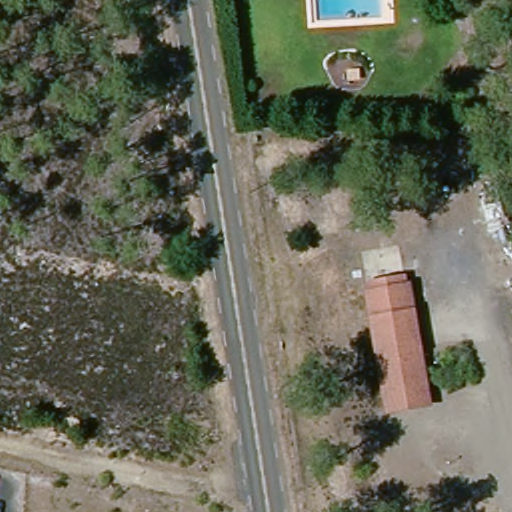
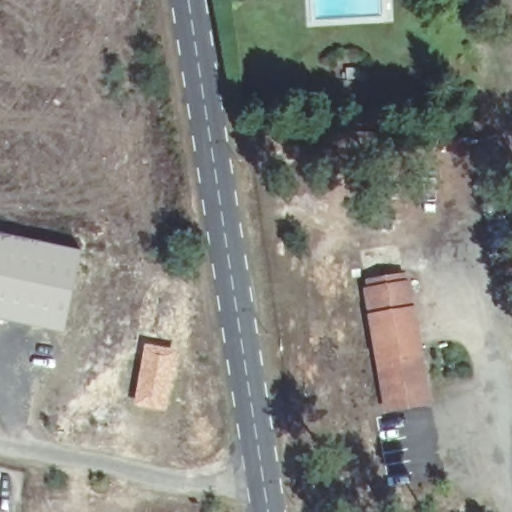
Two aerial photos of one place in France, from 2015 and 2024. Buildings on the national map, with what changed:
new [(0,319),(0,234),(82,251),(65,333),(0,319)]
unchanged [(394,417),(390,390),(383,392),(372,327),(377,325),(373,305),(369,282),(401,275),(406,299),(429,409),(394,417)]
new [(146,350),(176,356),(166,410),(136,405),(146,350)]

